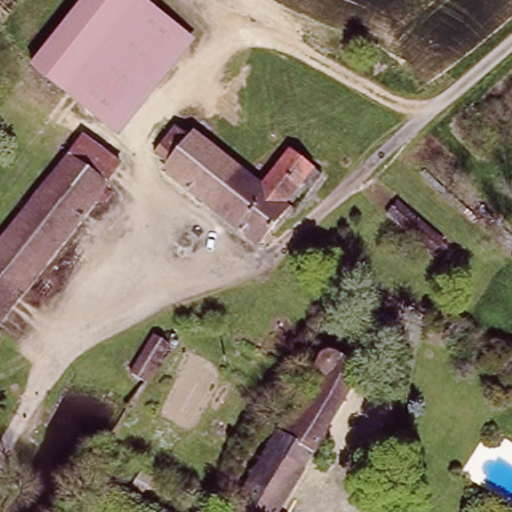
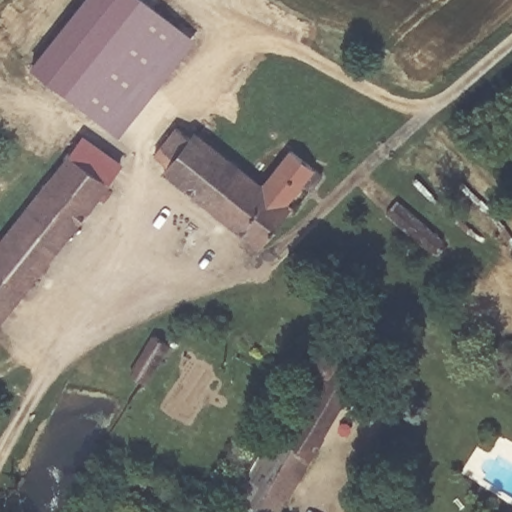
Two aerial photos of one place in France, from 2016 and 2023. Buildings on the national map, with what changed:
unchanged [(113,139),(27,70),(82,0),(127,0),(186,47),(113,139)]
unchanged [(284,159),(303,174),(314,182),(303,195),(293,189),(275,211),(281,215),(251,254),(159,179),(163,173),(137,152),(157,125),(186,147),(191,141),(256,192),(284,159)]
unchanged [(116,170),(99,190),(67,165),(83,143),(116,170)]
unchanged [(67,165),(99,190),(103,193),(0,321),(0,240),(64,161),(67,165)]
unchanged [(442,237),(432,251),(378,209),(389,195),(442,237)]
unchanged [(151,342),(163,351),(138,390),(127,381),(151,342)]
unchanged [(299,390),(292,385),(306,362),(314,367),(321,363),(329,363),(356,380),(277,512),(228,512),(299,390)]

